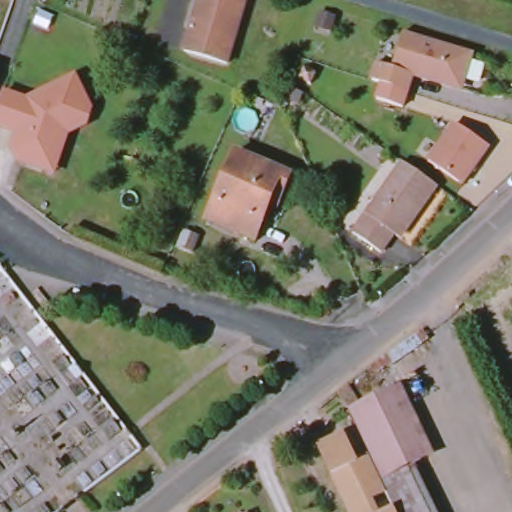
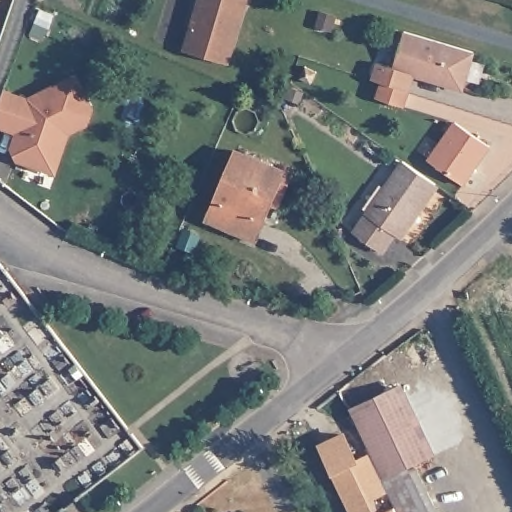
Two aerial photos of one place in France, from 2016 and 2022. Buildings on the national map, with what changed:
unchanged [(199,0),(239,0),(238,3),(244,5),(226,60),(184,48),(199,0)]
unchanged [(343,12),(336,31),(316,26),(324,6),(343,12)]
unchanged [(361,91),(366,76),(373,58),(384,60),(394,25),(474,50),(461,87),(413,73),(408,91),(403,105),(361,91)]
unchanged [(301,64),(316,70),(309,83),(296,78),(301,64)]
unchanged [(71,138),(59,176),(16,163),(11,151),(15,135),(0,129),(0,112),(7,91),(29,98),(78,74),(94,109),(89,128),(71,138)]
unchanged [(459,125),(493,150),(464,189),(431,164),(459,125)]
unchanged [(231,147),(284,172),(275,196),(267,193),(246,240),(199,219),(231,147)]
unchanged [(433,193),(397,239),(389,239),(376,254),(346,230),(397,164),(433,193)]
unchanged [(347,380),(359,404),(397,385),(432,455),(414,463),(379,479),(374,471),(373,467),(344,408),(337,389),(347,380)]
unchanged [(374,471),(379,479),(394,512),(350,512),(324,457),(346,446),(359,473),(373,467),(374,471)]
unchanged [(436,512),(394,512),(379,479),(414,463),(436,512)]

